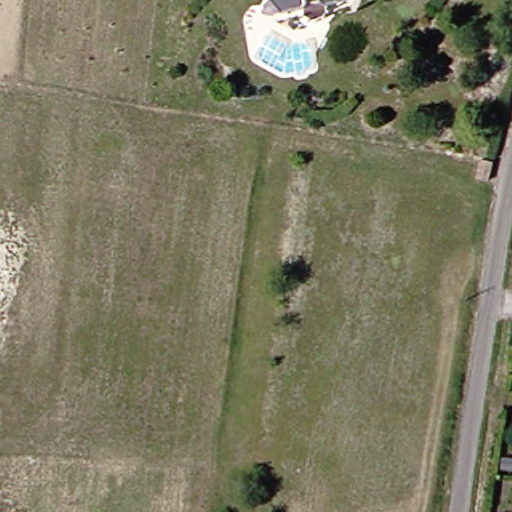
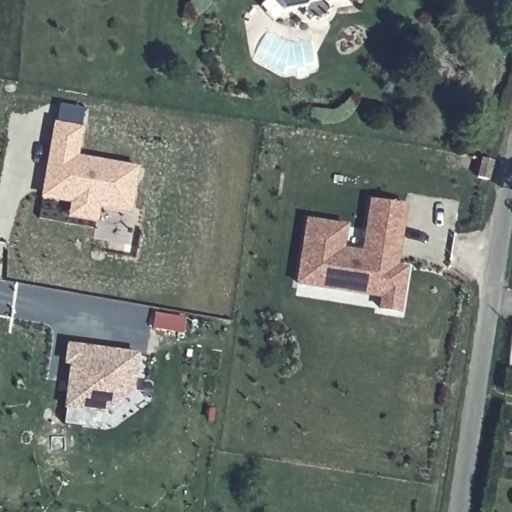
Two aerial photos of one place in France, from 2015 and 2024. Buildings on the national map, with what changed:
new [(51,146),(55,124),(81,129),(78,150),(76,158),(137,169),(130,209),(59,197),(43,194),(44,189),(49,161),(51,146)]
new [(301,283),(311,219),(350,225),(346,248),(367,251),(375,199),(409,204),(403,240),(400,265),(410,268),(403,310),(384,307),(385,295),(358,291),(301,283)]
new [(68,404),(74,361),(69,359),(71,343),(139,353),(135,389),(105,409),(68,404)]

